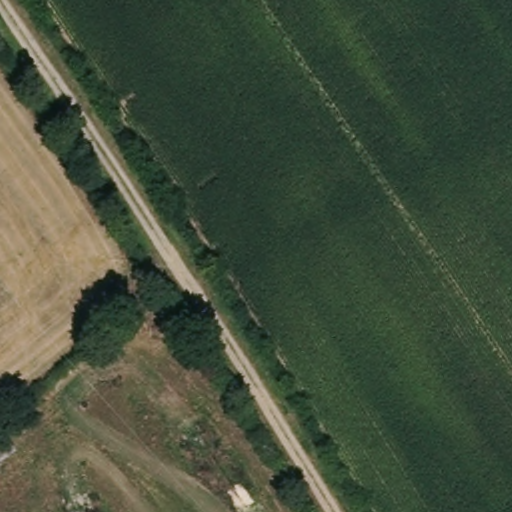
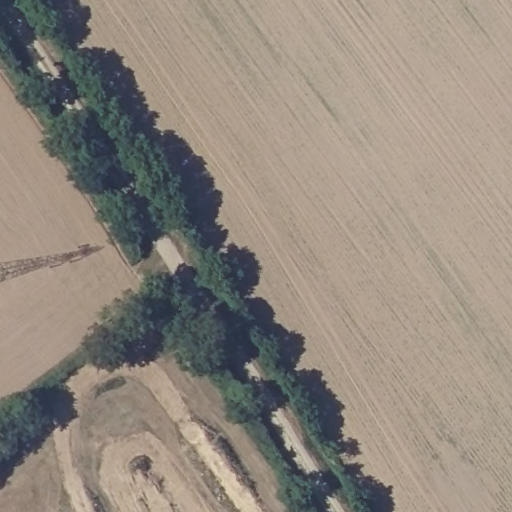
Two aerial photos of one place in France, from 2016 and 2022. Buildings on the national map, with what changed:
unchanged [(21,454),(0,471),(0,440),(6,436),(21,454)]

